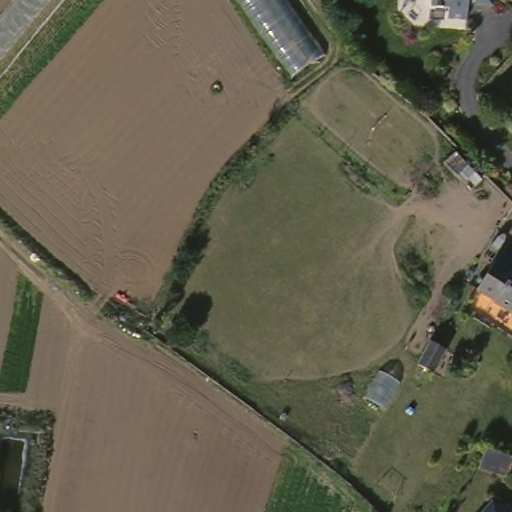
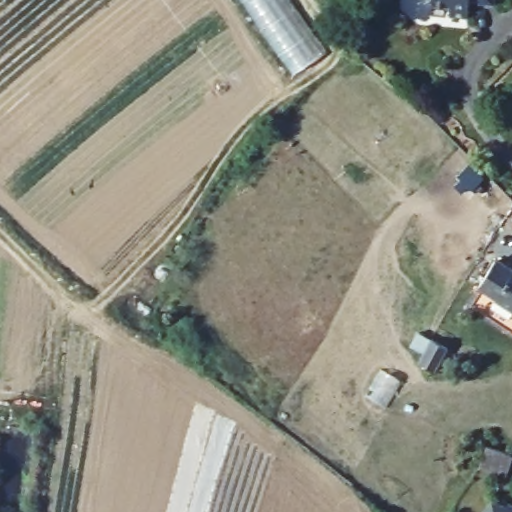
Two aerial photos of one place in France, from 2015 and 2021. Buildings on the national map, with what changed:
unchanged [(295,79),(240,0),(286,0),(326,56),(295,79)]
unchanged [(450,22),(451,13),(432,11),(433,1),(420,0),(496,0),(495,9),(477,9),(470,8),(469,24),(450,22)]
unchanged [(512,271),(512,312),(493,300),(494,299),(477,288),(494,259),(512,271)]
unchanged [(427,344),(429,341),(446,350),(434,374),(417,366),(427,344)]
unchanged [(489,449),(512,457),(512,469),(509,478),(481,469),(489,449)]
unchanged [(492,507),(506,512),(487,512),(492,507)]
unchanged [(506,509),(512,512),(506,512),(506,509)]

